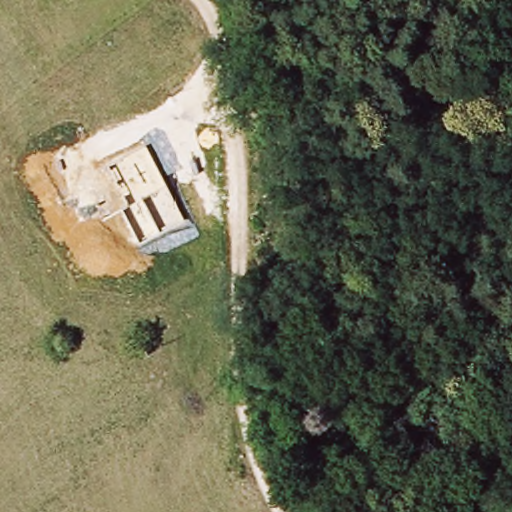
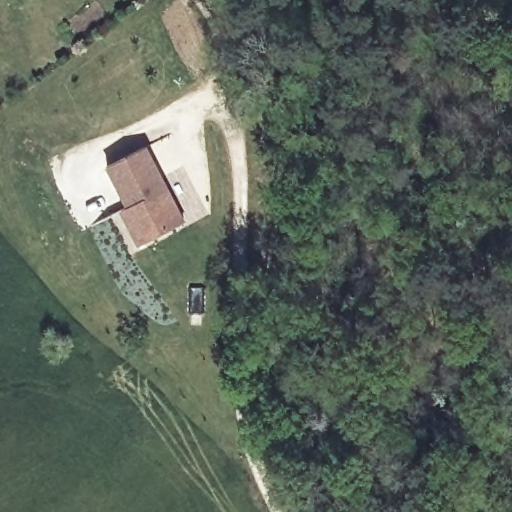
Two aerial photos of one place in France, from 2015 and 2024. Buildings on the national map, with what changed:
new [(138,244),(120,209),(125,205),(107,167),(146,146),(184,219),(138,244)]

